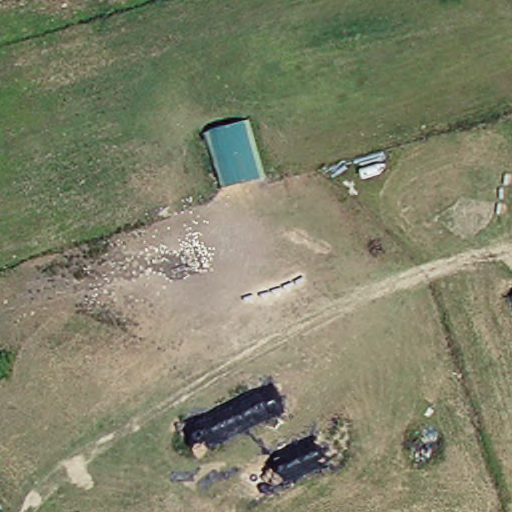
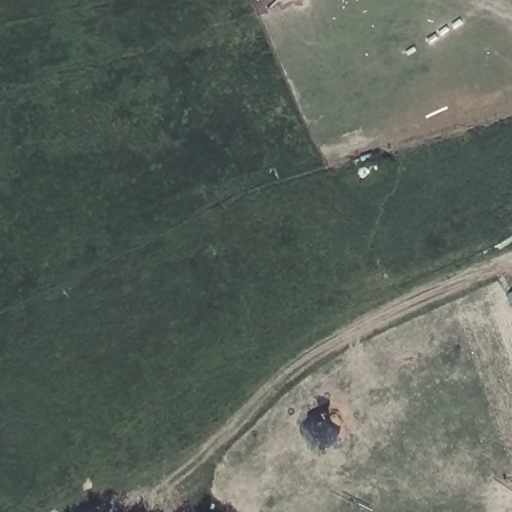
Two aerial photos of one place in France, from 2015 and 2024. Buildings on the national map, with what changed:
demolished [(240,121),(260,180),(228,188),(210,131),(240,121)]
unchanged [(505,296),(512,293),(512,311),(505,296)]

